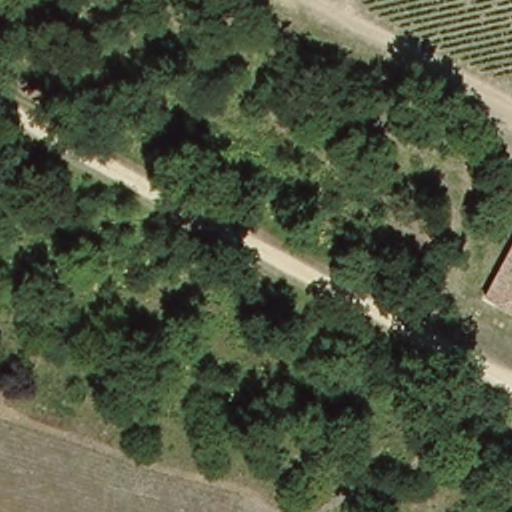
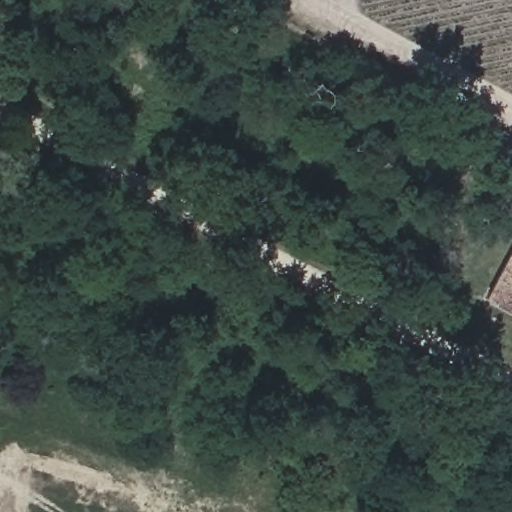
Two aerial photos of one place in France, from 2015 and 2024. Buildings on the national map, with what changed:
unchanged [(483,299),(512,244),(512,315),(483,299)]

